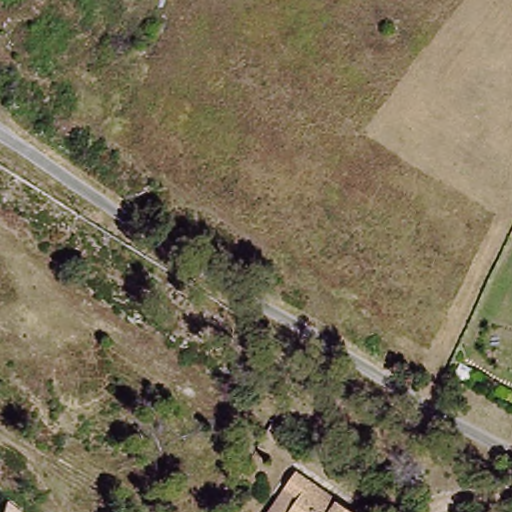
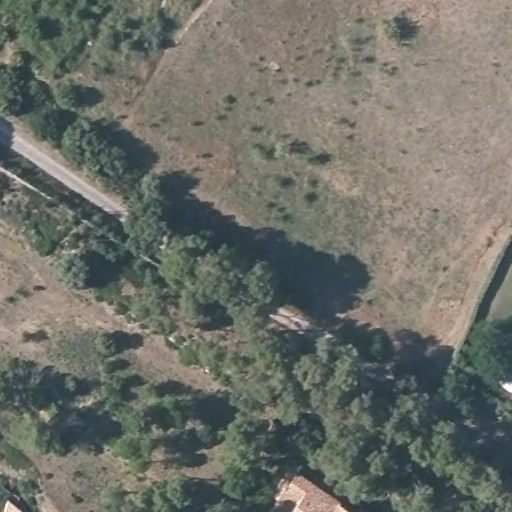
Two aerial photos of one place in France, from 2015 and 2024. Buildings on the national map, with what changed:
unchanged [(278,406),(286,415),(282,419),(268,437),(261,430),(274,412),(278,406)]
unchanged [(293,472),(355,506),(361,498),(379,512),(268,512),(285,486),(293,472)]
unchanged [(0,512),(0,502),(11,512),(0,512)]

